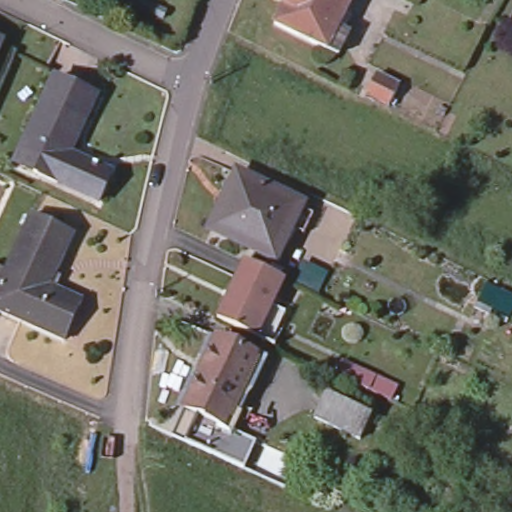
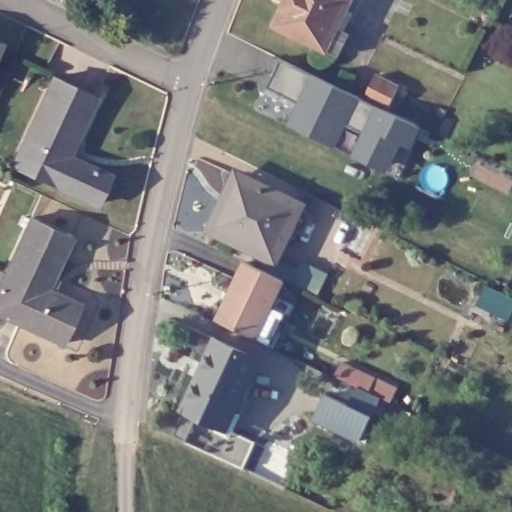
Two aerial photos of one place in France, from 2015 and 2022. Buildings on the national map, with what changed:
unchanged [(288,0),(352,0),(327,52),(275,26),(288,0)]
new [(281,59),(420,126),(410,147),(391,138),(377,167),(355,156),(366,135),(345,125),(334,146),(299,130),(309,109),(266,88),(281,59)]
unchanged [(31,136),(59,75),(100,95),(72,155),(114,175),(102,201),(37,171),(19,162),(31,136)]
unchanged [(365,95),(373,79),(375,76),(397,87),(396,90),(388,107),(365,95)]
unchanged [(278,251),(214,220),(223,200),(238,167),(248,172),(302,197),(278,251)]
unchanged [(1,274),(28,217),(69,236),(45,286),(78,302),(59,341),(0,314),(0,274),(1,274)]
unchanged [(217,312),(243,252),(280,270),(267,297),(280,303),(266,335),(252,328),(217,312)]
unchanged [(228,431),(180,410),(183,404),(214,333),(256,352),(232,405),(224,423),(231,426),(228,431)]
unchanged [(354,384),(342,378),(321,368),(328,355),(348,365),(360,371),(354,384)]
unchanged [(371,424),(364,420),(357,437),(312,416),(322,391),(368,412),(375,416),(371,424)]

